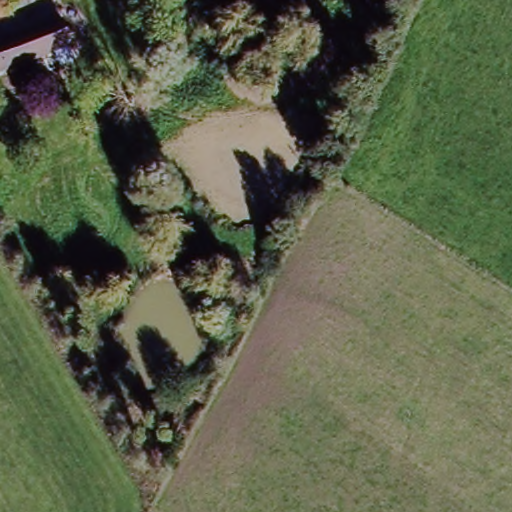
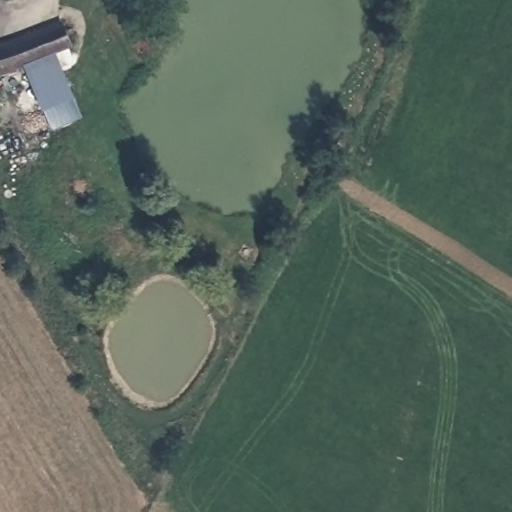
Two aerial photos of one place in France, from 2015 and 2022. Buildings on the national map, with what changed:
unchanged [(69,48),(0,75),(0,48),(60,25),(69,48)]
new [(84,118),(52,131),(25,65),(57,53),(84,118)]

